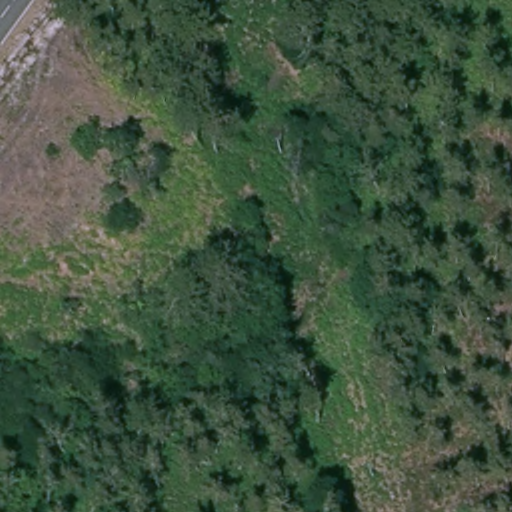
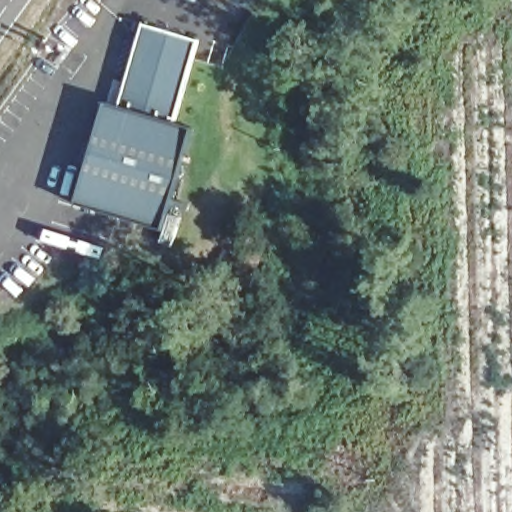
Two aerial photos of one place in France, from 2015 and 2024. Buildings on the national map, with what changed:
new [(175,124),(192,129),(165,228),(78,203),(107,104),(120,108),(145,25),(197,42),(175,124)]

